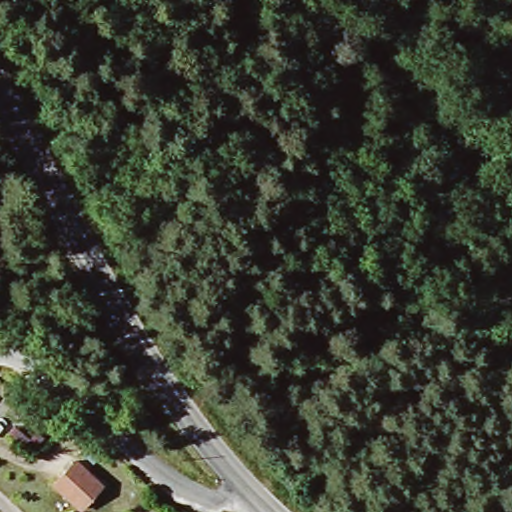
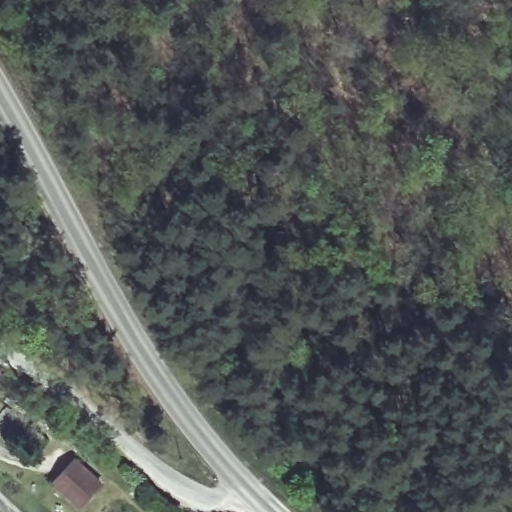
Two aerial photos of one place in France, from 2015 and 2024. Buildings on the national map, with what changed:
unchanged [(104,481),(84,504),(56,480),(78,457),(104,481)]

